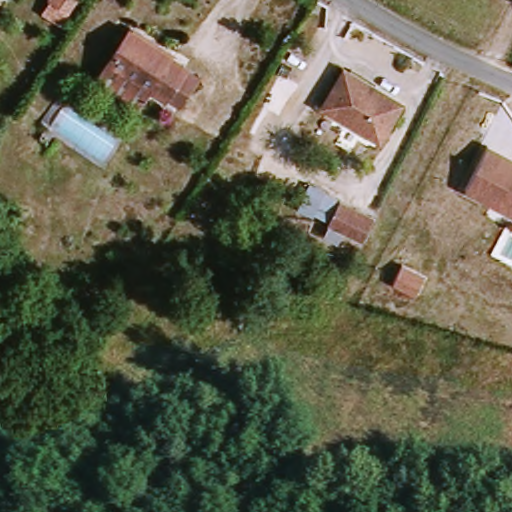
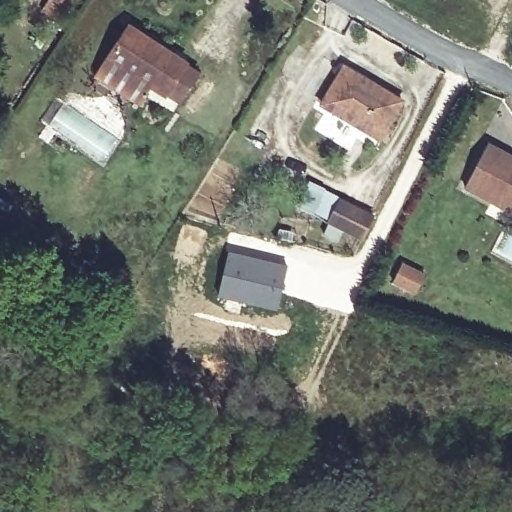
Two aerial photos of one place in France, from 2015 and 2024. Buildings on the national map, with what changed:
unchanged [(95,75),(106,57),(126,27),(179,61),(160,90),(143,80),(131,99),(95,75)]
unchanged [(396,104),(372,137),(325,104),(350,70),(396,104)]
unchanged [(464,189),(490,142),(512,153),(512,213),(464,189)]
unchanged [(350,242),(311,220),(323,199),(363,221),(350,242)]
new [(228,250),(287,265),(276,310),(216,296),(228,250)]
new [(402,265),(424,277),(414,295),(392,282),(402,265)]

